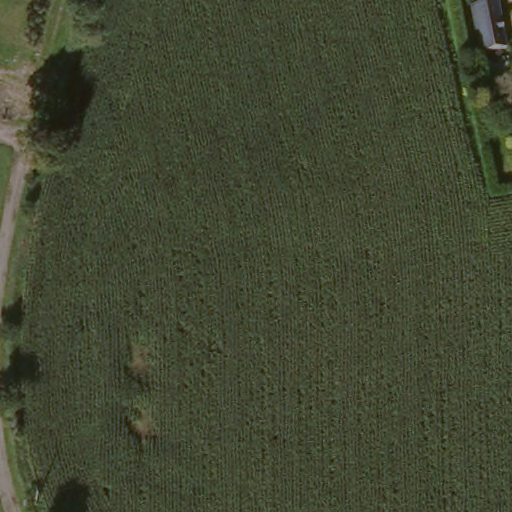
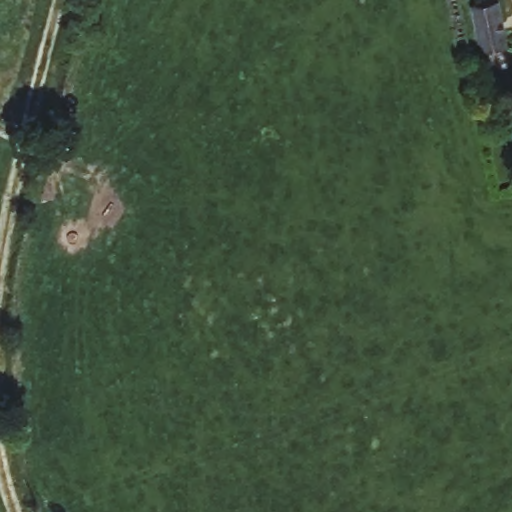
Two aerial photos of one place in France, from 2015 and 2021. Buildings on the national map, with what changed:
unchanged [(467,8),(474,7),(494,5),(501,54),(476,59),(467,8)]

